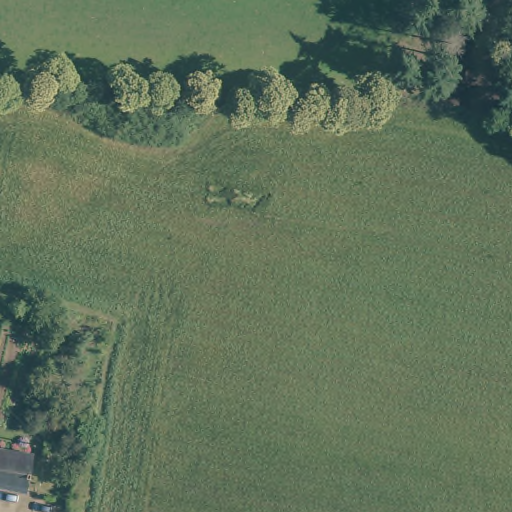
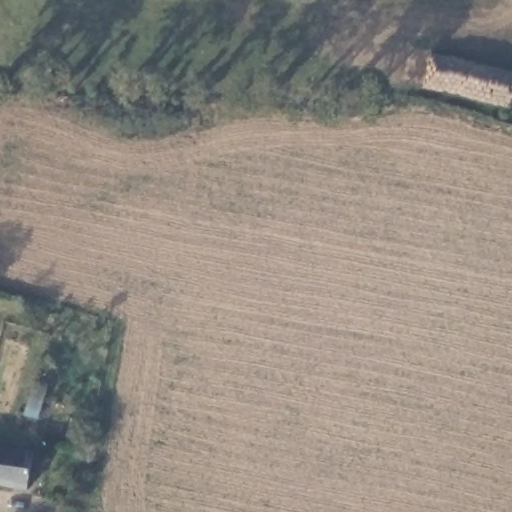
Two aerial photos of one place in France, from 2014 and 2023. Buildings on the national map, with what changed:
unchanged [(33,488),(0,482),(0,442),(40,449),(33,488)]

